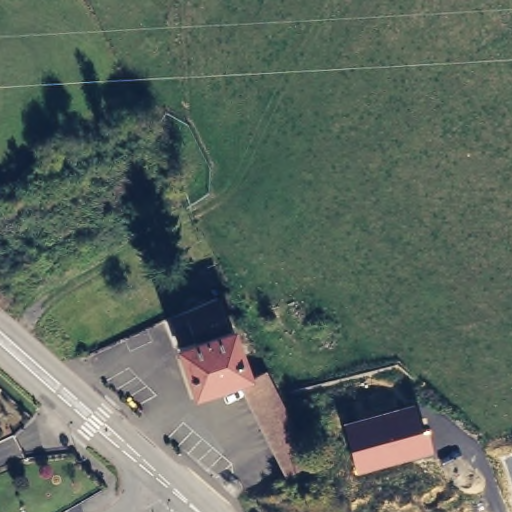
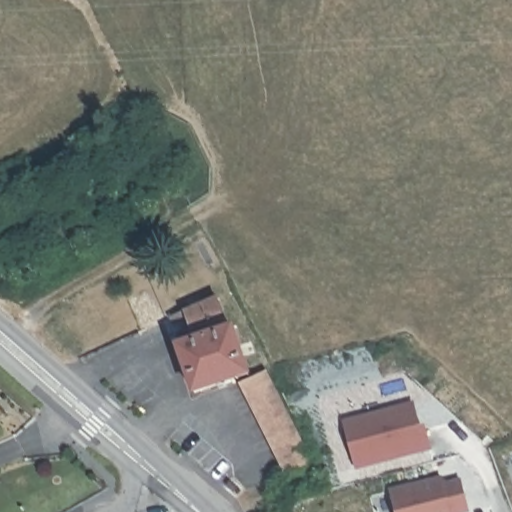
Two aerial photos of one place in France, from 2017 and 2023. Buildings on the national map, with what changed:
unchanged [(219,293),(231,328),(236,328),(250,374),(197,391),(181,345),(197,338),(192,320),(177,324),(174,313),(219,293)]
unchanged [(312,462),(285,476),(252,401),(244,385),(269,373),(280,396),(312,462)]
unchanged [(355,470),(340,422),(414,403),(420,422),(424,421),(432,450),(355,470)]
new [(442,484),(459,479),(467,511),(463,512),(394,512),(389,490),(440,477),(442,484)]

